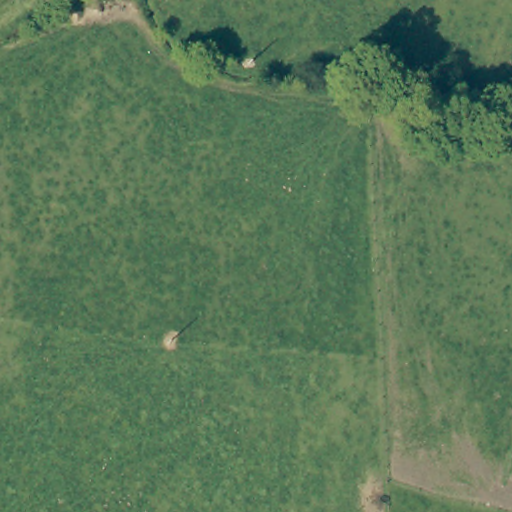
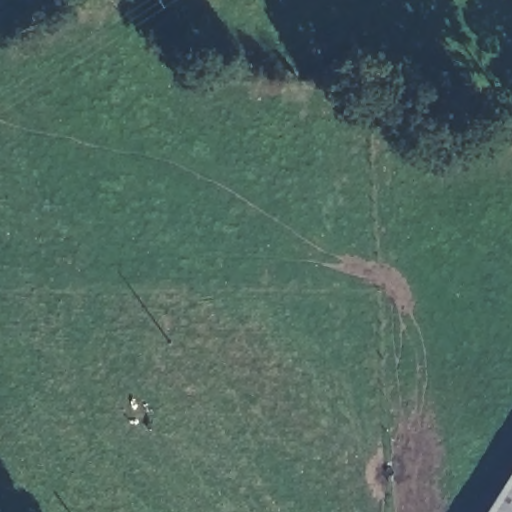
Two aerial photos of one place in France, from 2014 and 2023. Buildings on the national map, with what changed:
new [(512,476),(512,512),(489,512),(512,476)]

